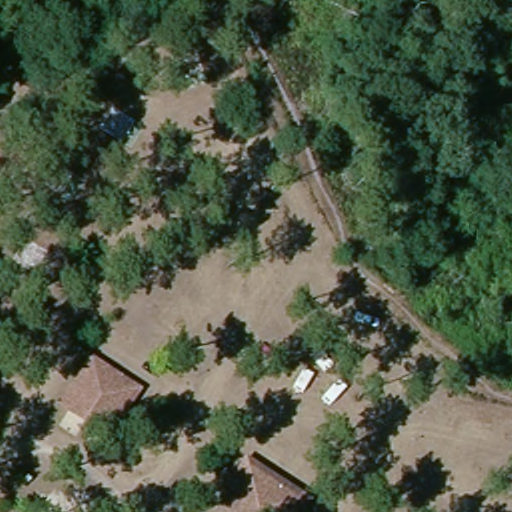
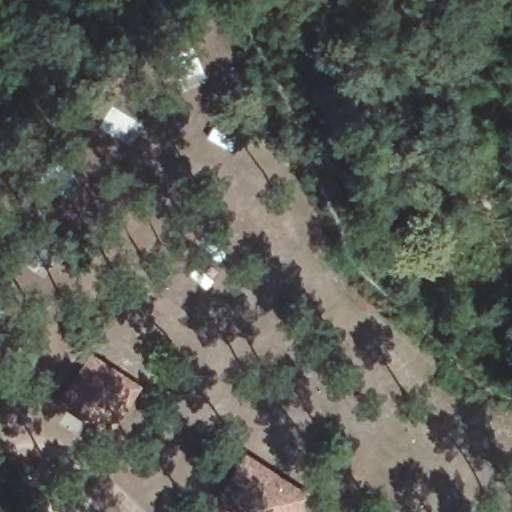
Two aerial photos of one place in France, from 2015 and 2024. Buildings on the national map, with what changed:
unchanged [(64,390),(90,350),(139,380),(115,421),(64,390)]
unchanged [(107,437),(54,406),(64,390),(115,421),(107,437)]
unchanged [(295,512),(242,512),(220,499),(246,454),(308,489),(295,512)]

